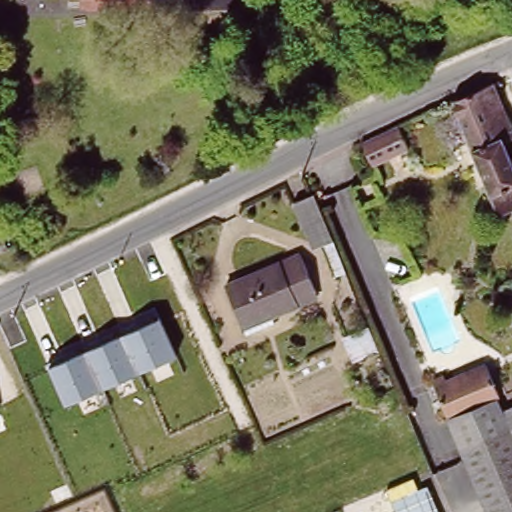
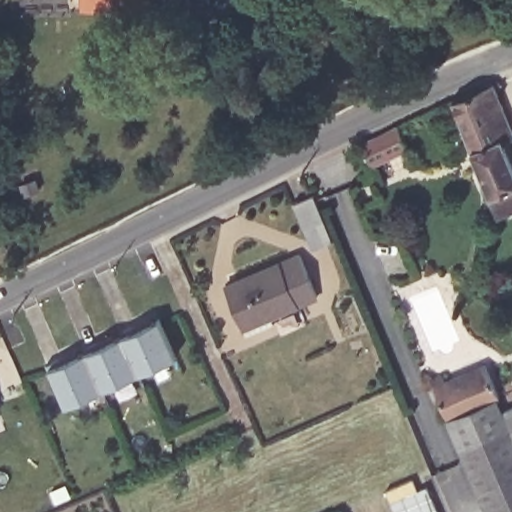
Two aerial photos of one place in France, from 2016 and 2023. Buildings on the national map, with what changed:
unchanged [(84,6),(84,0),(149,0),(149,4),(84,6)]
unchanged [(494,86),(512,128),(512,143),(505,146),(512,164),(512,210),(499,215),(454,105),(494,86)]
unchanged [(394,124),(405,150),(369,166),(358,141),(394,124)]
unchanged [(315,192),(334,240),(314,249),(294,200),(315,192)]
unchanged [(241,324),(226,286),(301,254),(319,297),(271,317),(243,329),(241,324)]
unchanged [(161,318),(179,356),(66,406),(48,366),(161,318)]
unchanged [(433,382),(444,377),(446,382),(483,367),(495,394),(507,421),(512,433),(512,512),(488,512),(447,414),(433,382)]
unchanged [(512,403),(512,433),(501,408),(512,403)]
unchanged [(0,413),(0,409),(1,412),(0,413)]
unchanged [(414,494),(425,488),(434,512),(391,512),(383,492),(408,481),(414,494)]

